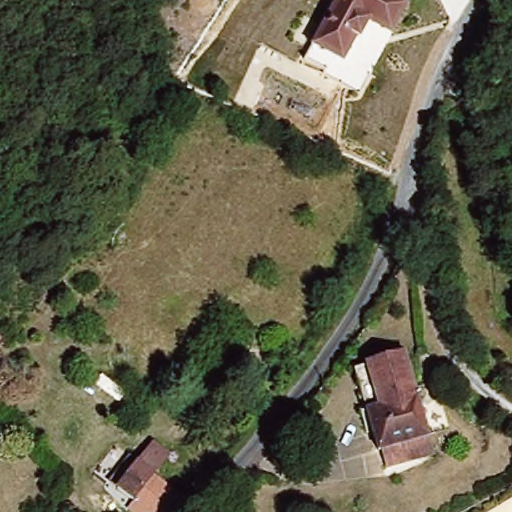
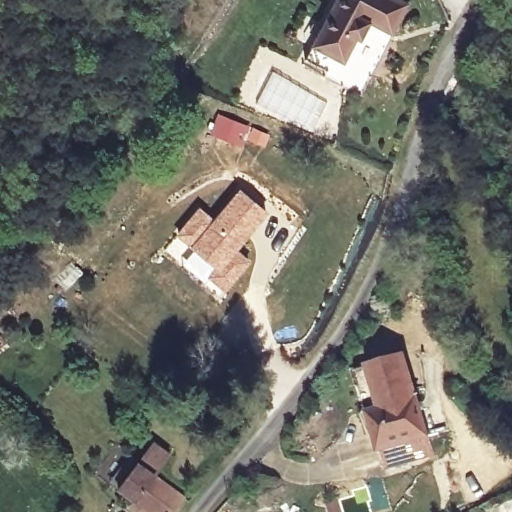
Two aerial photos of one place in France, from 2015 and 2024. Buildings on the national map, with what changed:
unchanged [(359,96),(301,66),(335,0),(401,0),(407,3),(359,96)]
new [(217,114),(250,127),(241,148),(209,134),(217,114)]
new [(199,206),(212,218),(239,188),(267,214),(237,250),(252,262),(224,294),(204,278),(212,270),(175,236),(199,206)]
unchanged [(5,348),(0,353),(0,342),(5,348)]
unchanged [(385,467),(381,451),(379,452),(355,371),(366,367),(365,365),(404,353),(429,437),(434,453),(385,467)]
unchanged [(148,442),(165,455),(149,476),(180,498),(169,512),(143,512),(113,489),(148,442)]

